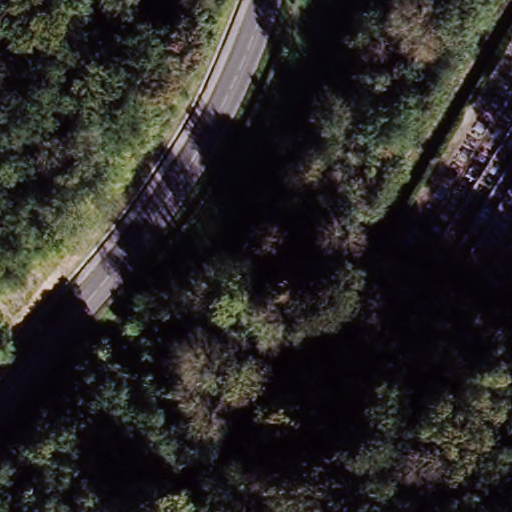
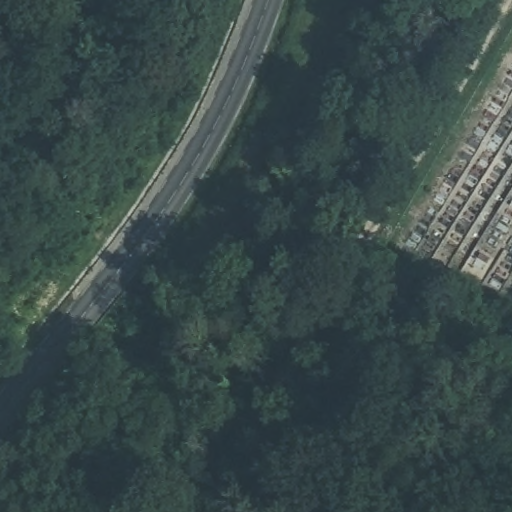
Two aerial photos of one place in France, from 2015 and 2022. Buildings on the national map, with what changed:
[]

